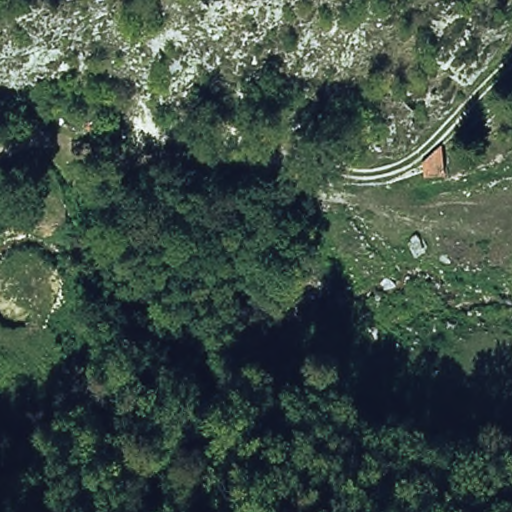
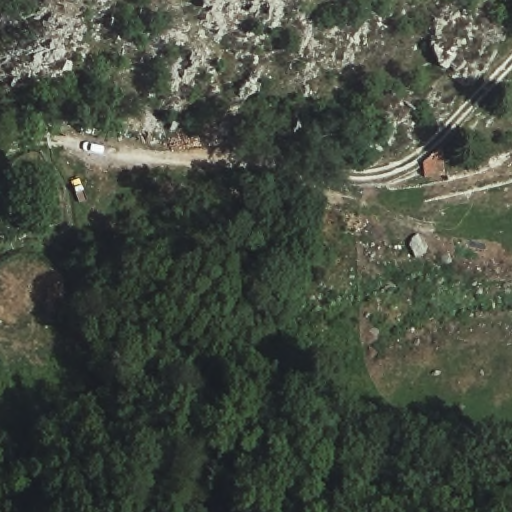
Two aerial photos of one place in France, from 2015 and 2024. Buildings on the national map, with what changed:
unchanged [(423,177),(421,163),(443,146),(444,177),(423,177)]

